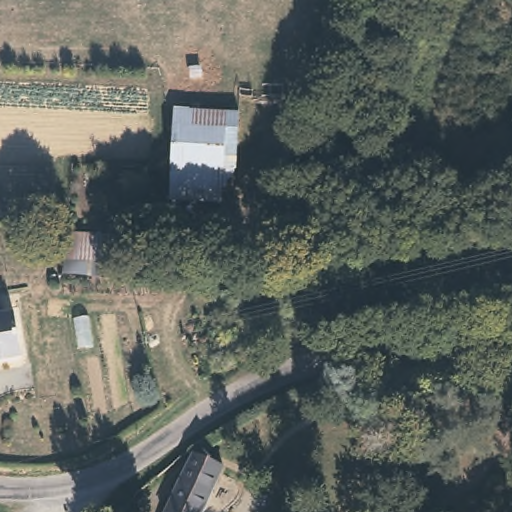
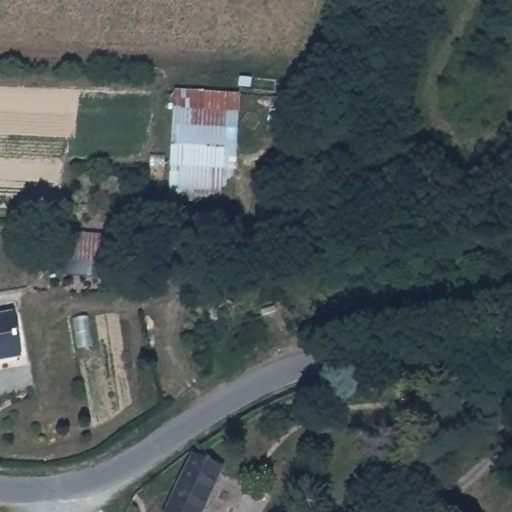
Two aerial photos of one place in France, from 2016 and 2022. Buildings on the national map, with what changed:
unchanged [(169,167),(173,108),(238,112),(237,128),(223,127),(221,170),(219,200),(168,198),(169,167)]
unchanged [(65,231),(125,238),(122,281),(61,274),(65,231)]
unchanged [(0,360),(0,315),(11,313),(18,357),(0,360)]
unchanged [(216,469),(198,512),(167,512),(188,457),(216,469)]

